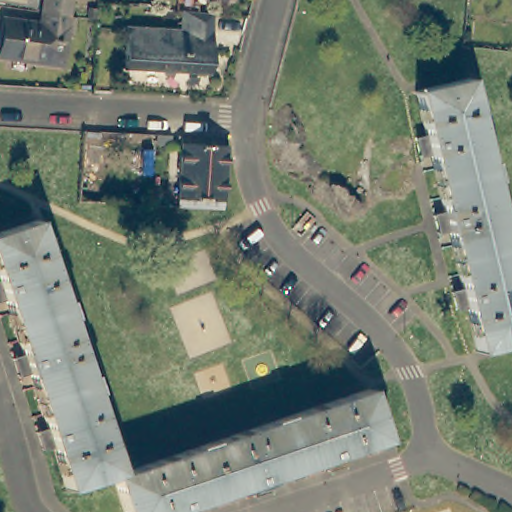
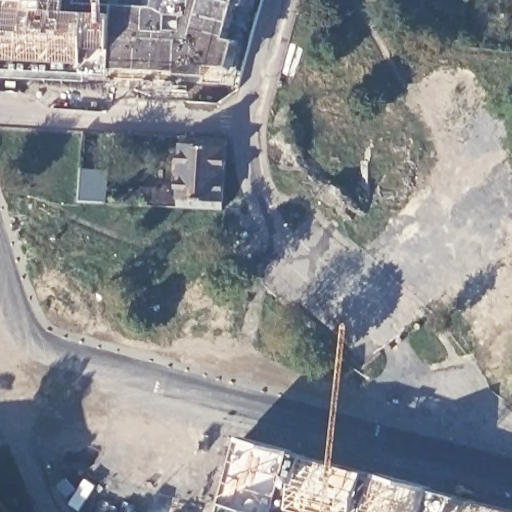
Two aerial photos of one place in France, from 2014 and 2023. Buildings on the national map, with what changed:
demolished [(35,0),(72,0),(69,21),(43,18),(45,1),(35,0)]
demolished [(214,17),(209,78),(123,73),(126,32),(184,35),(186,15),(214,17)]
demolished [(69,21),(61,70),(0,60),(0,48),(3,24),(41,31),(43,18),(69,21)]
demolished [(457,82),(469,80),(512,278),(512,348),(473,354),(463,309),(456,274),(450,248),(440,198),(433,169),(427,137),(417,91),(457,82)]
unchanged [(99,131),(95,203),(79,202),(83,130),(99,131)]
unchanged [(180,140),(225,142),(223,215),(178,212),(180,140)]
demolished [(36,225),(67,316),(16,332),(11,318),(0,285),(0,237),(36,225)]
demolished [(67,316),(92,391),(41,406),(36,393),(20,343),(16,332),(67,316)]
demolished [(92,391),(121,478),(114,481),(92,488),(71,496),(56,453),(56,452),(45,419),(41,406),(92,391)]
demolished [(278,426),(369,395),(385,446),(341,461),(307,473),(295,477),(278,426)]
demolished [(205,450),(278,426),(295,477),(280,482),(233,497),(219,502),(205,450)]
demolished [(121,478),(205,450),(219,502),(208,506),(191,512),(124,512),(114,481),(121,478)]

